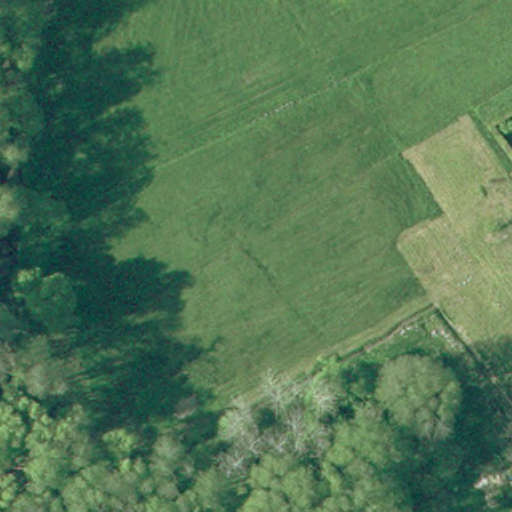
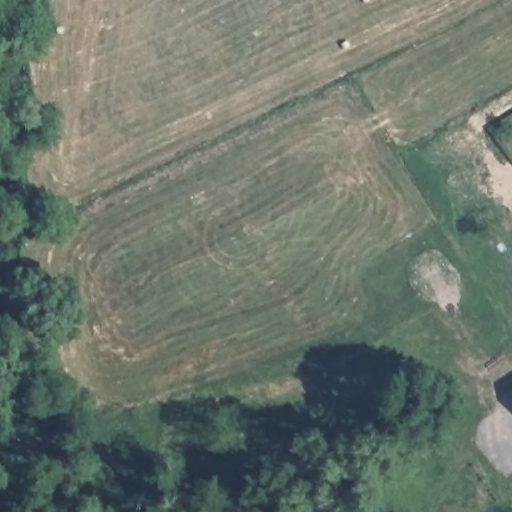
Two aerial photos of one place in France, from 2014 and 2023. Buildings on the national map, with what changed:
unchanged [(0,418),(0,412),(3,416),(0,418)]

